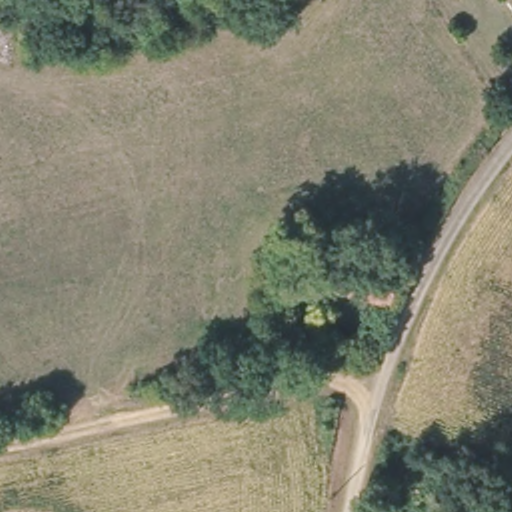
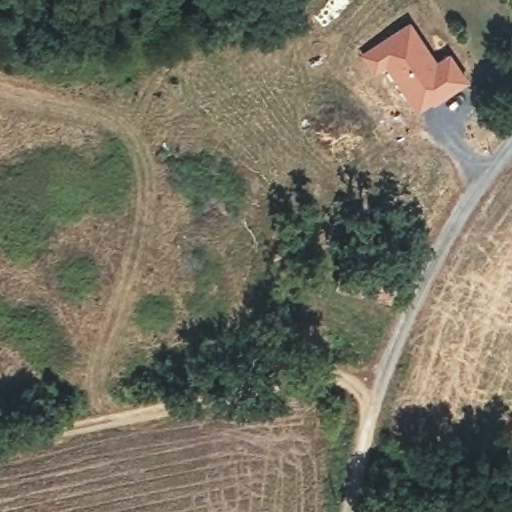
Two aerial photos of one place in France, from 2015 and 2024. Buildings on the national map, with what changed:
new [(408,20),(436,58),(448,50),(468,80),(414,112),(384,68),(372,76),(357,55),(408,20)]
new [(371,249),(363,282),(315,273),(321,240),(371,249)]

